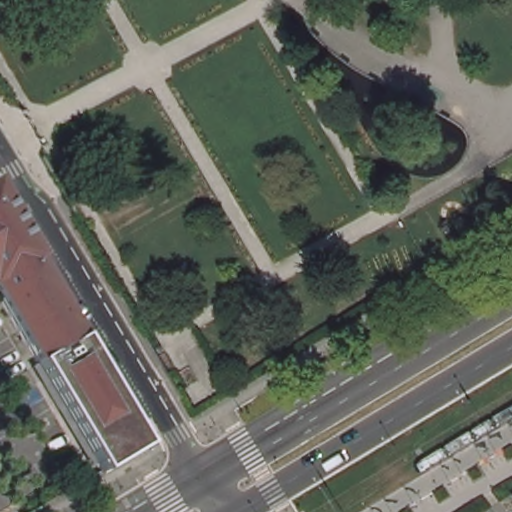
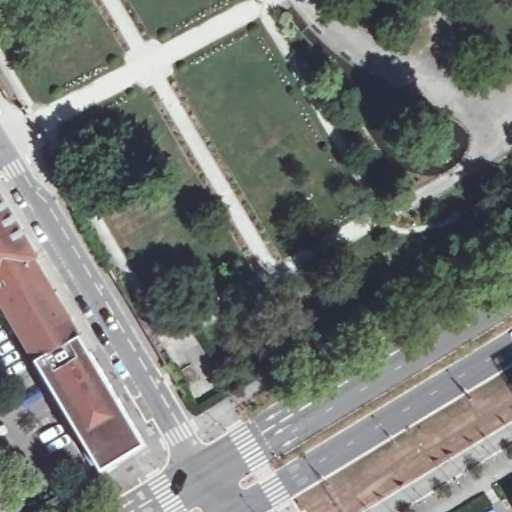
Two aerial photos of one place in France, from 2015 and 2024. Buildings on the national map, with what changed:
unchanged [(40,255),(86,332),(150,440),(149,441),(149,442),(110,465),(108,466),(106,464),(106,463),(105,462),(107,461),(100,448),(98,450),(96,447),(97,447),(36,345),(28,350),(18,333),(26,328),(0,283),(0,180),(43,252),(40,255)]

